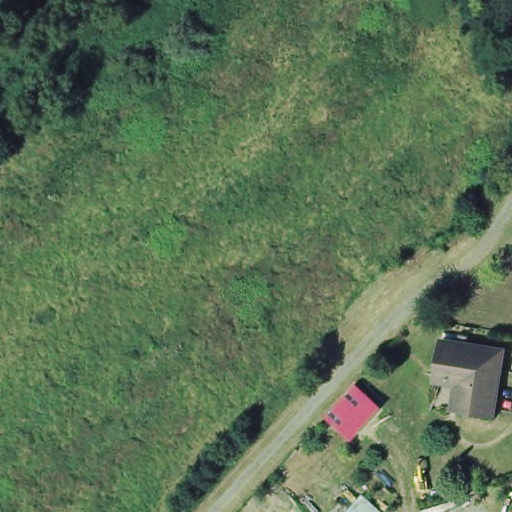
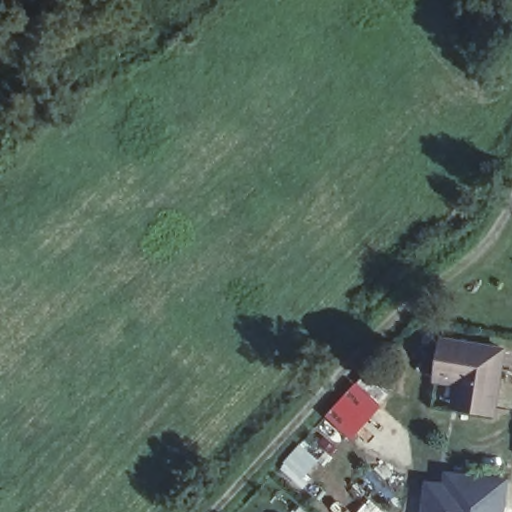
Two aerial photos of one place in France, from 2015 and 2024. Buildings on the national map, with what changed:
unchanged [(501,338),(492,397),(458,392),(461,367),(435,363),(440,329),(501,338)]
unchanged [(352,441),(324,417),(358,383),(384,408),(352,441)]
new [(445,488),(447,477),(508,482),(504,512),(423,512),(426,487),(445,488)]
unchanged [(362,493),(384,512),(345,512),(362,493)]

